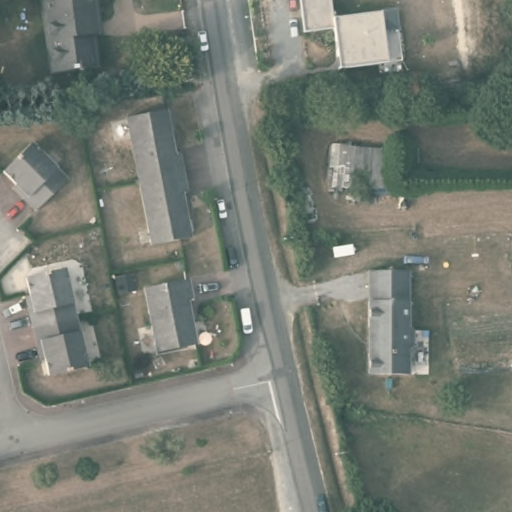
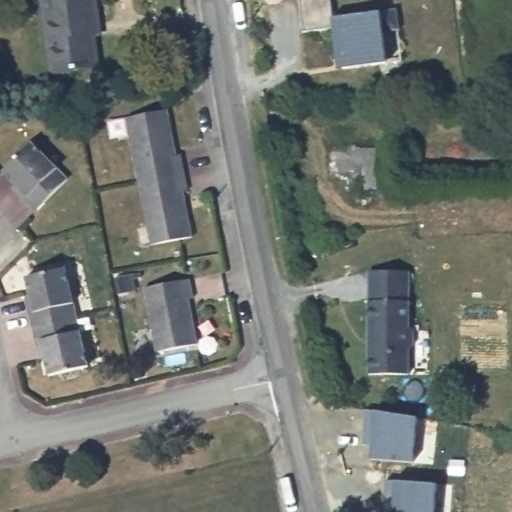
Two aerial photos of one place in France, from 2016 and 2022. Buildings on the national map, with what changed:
unchanged [(101,32),(95,33),(100,65),(55,71),(46,0),(96,0),(101,32)]
unchanged [(335,58),(331,29),(301,33),(297,0),(328,0),(331,20),(393,12),(395,30),(400,62),(385,64),(342,69),(336,70),(335,58)]
unchanged [(143,178),(130,116),(171,109),(179,152),(183,151),(187,169),(143,178)]
unchanged [(33,141),(68,176),(34,208),(21,196),(25,191),(4,170),(33,141)]
unchanged [(392,152),(389,192),(352,192),(352,196),(330,195),(332,165),(336,165),(338,146),(392,152)]
unchanged [(191,187),(185,188),(194,233),(155,241),(143,178),(187,169),(191,187)]
unchanged [(36,323),(32,307),(36,305),(30,277),(70,267),(81,314),(36,323)]
unchanged [(408,320),(412,323),(413,345),(408,350),(409,374),(369,375),(368,271),(409,271),(408,320)]
unchanged [(191,276),(196,295),(189,296),(198,340),(158,349),(146,286),(191,276)]
unchanged [(91,363),(52,372),(44,340),(39,341),(36,323),(81,314),(91,363)]
new [(368,457),(369,446),(360,445),(363,409),(372,411),(415,418),(412,462),(368,457)]
new [(382,512),(383,480),(391,481),(435,485),(434,512),(382,512)]

